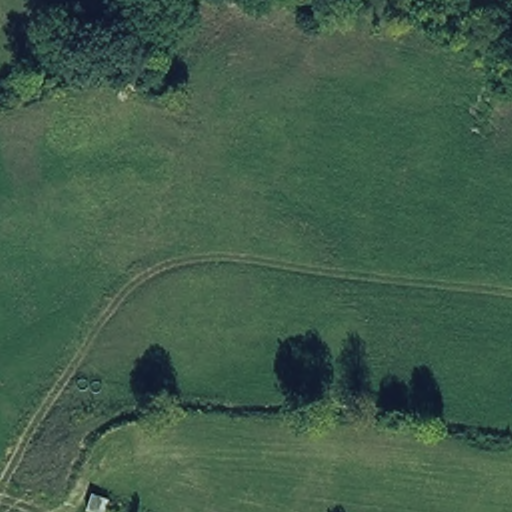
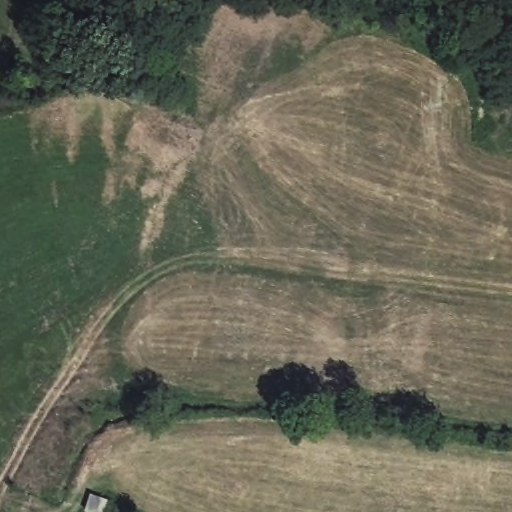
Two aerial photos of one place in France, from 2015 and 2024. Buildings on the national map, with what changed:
unchanged [(105,512),(96,512),(83,508),(89,490),(109,496),(105,512)]

